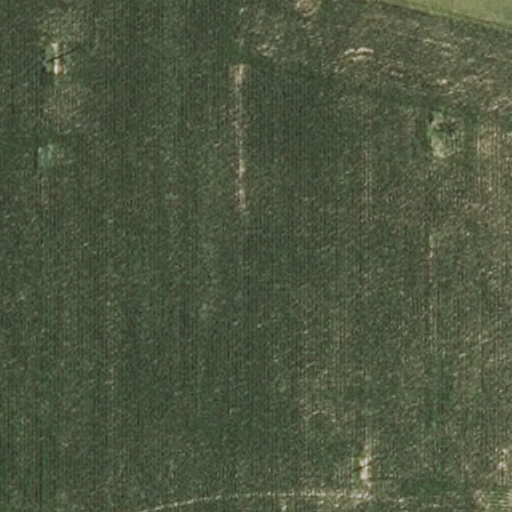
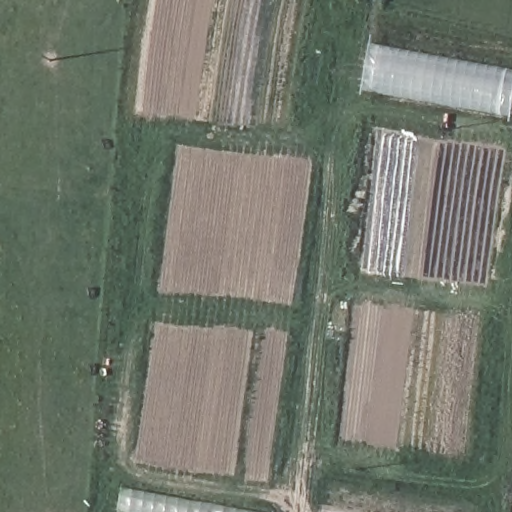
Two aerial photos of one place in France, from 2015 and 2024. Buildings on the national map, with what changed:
new [(512,118),(363,91),(372,44),(512,69),(512,118)]

